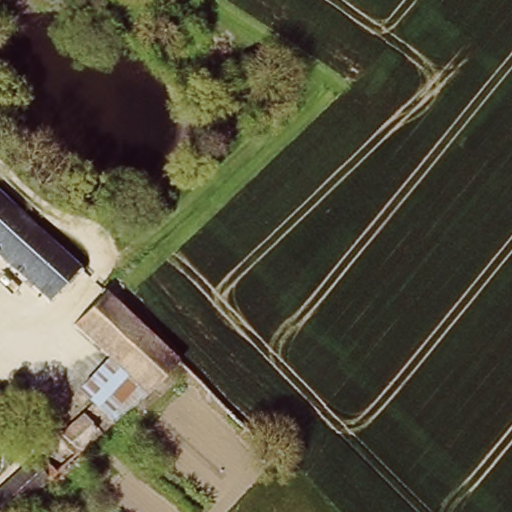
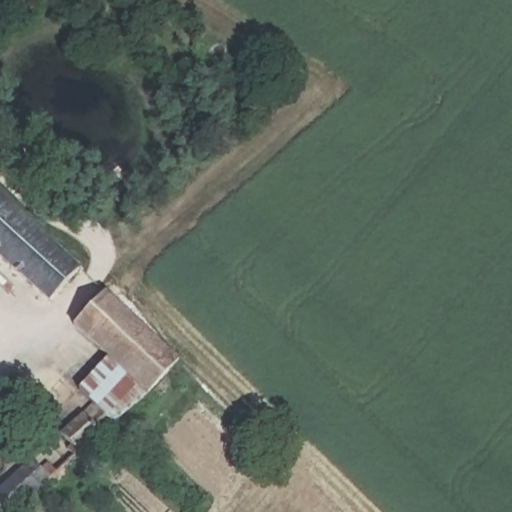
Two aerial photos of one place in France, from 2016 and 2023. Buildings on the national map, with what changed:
unchanged [(43,298),(0,258),(0,190),(76,262),(43,298)]
unchanged [(114,362),(73,323),(101,290),(176,361),(146,392),(114,362)]
unchanged [(146,392),(110,424),(96,410),(80,394),(114,362),(146,392)]
unchanged [(76,455),(58,433),(80,410),(88,418),(96,410),(110,424),(76,455)]
unchanged [(0,485),(25,460),(45,482),(11,512),(0,512),(0,485)]

